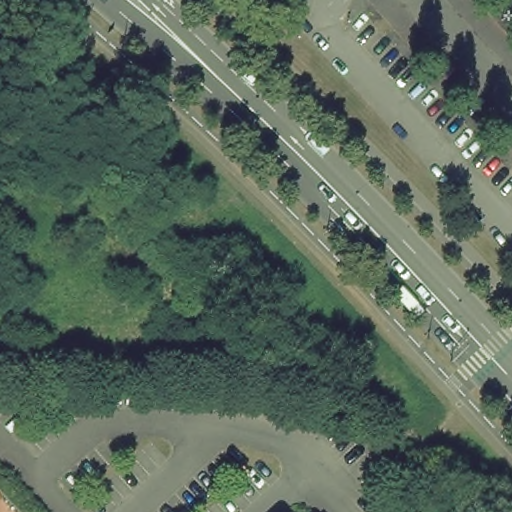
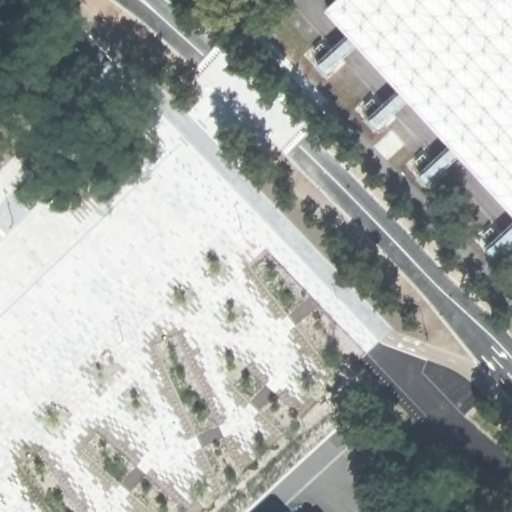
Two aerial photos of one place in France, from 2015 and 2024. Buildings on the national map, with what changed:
new [(334,0),(512,0),(512,216),(322,11),(334,0)]

